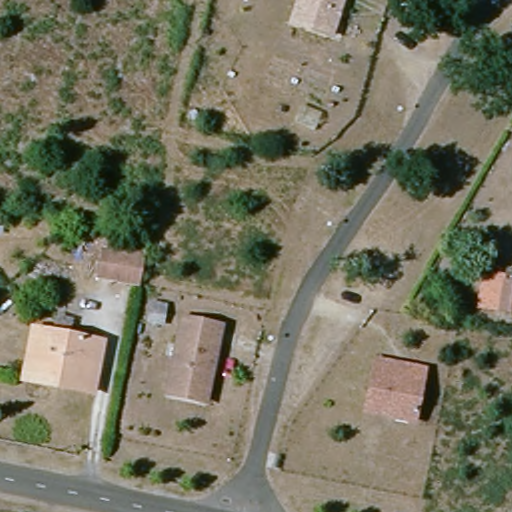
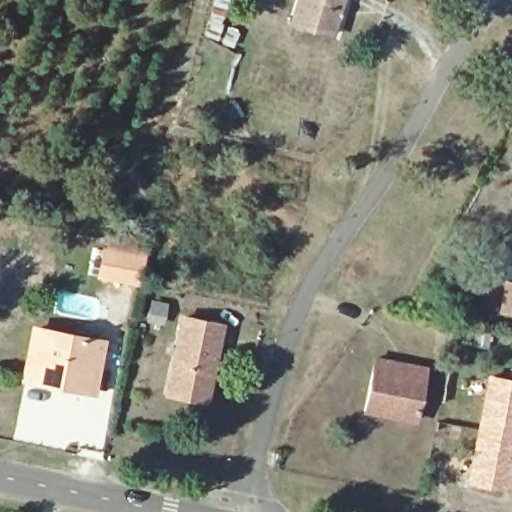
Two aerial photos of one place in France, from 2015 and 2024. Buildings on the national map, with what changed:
unchanged [(331,37),(291,24),(300,0),(343,0),(331,37)]
unchanged [(144,266),(142,275),(104,266),(107,236),(148,245),(144,266)]
unchanged [(506,277),(512,278),(512,309),(500,308),(506,277)]
unchanged [(223,322),(208,399),(169,392),(185,313),(223,322)]
unchanged [(50,389),(31,386),(42,332),(103,343),(95,386),(92,398),(50,389)]
unchanged [(363,413),(373,363),(400,367),(423,372),(420,387),(412,425),(363,413)]
new [(512,382),(512,468),(508,493),(470,486),(489,377),(512,382)]

